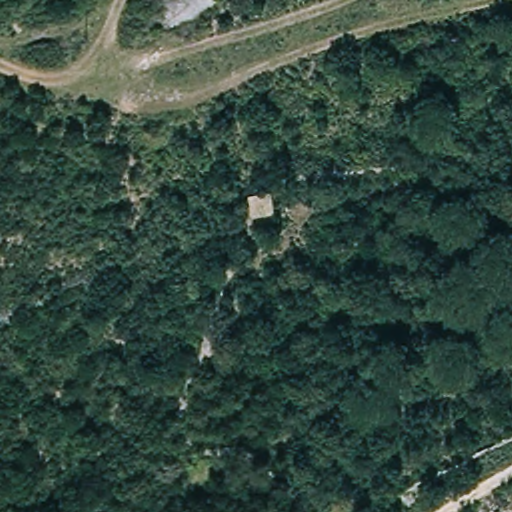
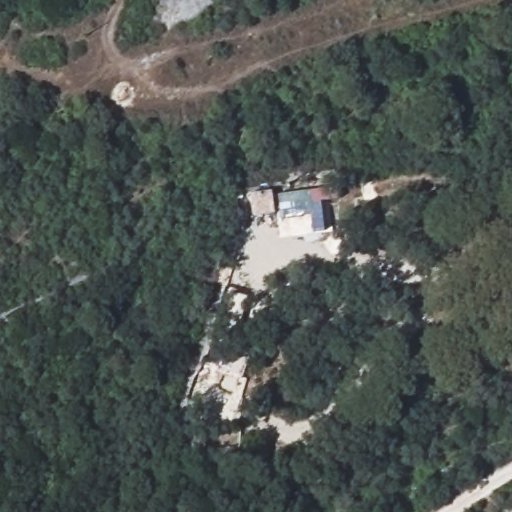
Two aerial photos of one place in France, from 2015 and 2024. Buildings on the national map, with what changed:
unchanged [(276,190),(278,214),(253,216),(251,195),(276,190)]

